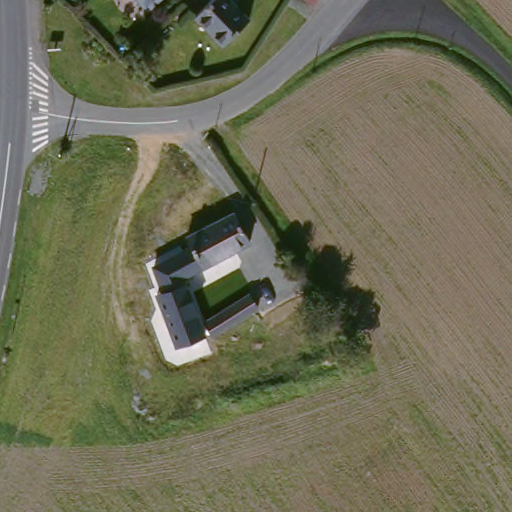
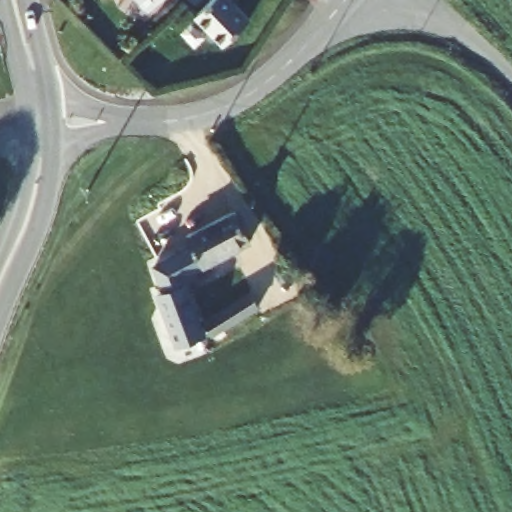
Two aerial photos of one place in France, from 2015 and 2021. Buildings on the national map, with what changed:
unchanged [(151,10),(142,0),(162,0),(151,10)]
unchanged [(211,0),(235,0),(252,19),(226,42),(197,12),(211,0)]
unchanged [(171,255),(198,242),(191,228),(237,206),(257,241),(182,278),(171,255)]
unchanged [(167,290),(193,280),(209,316),(255,288),(267,308),(217,336),(212,327),(185,341),(167,290)]

